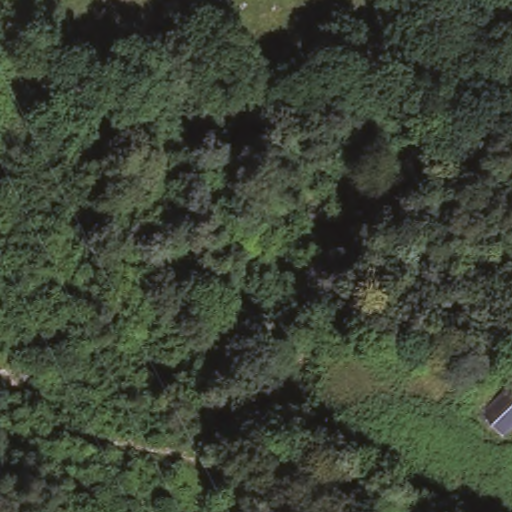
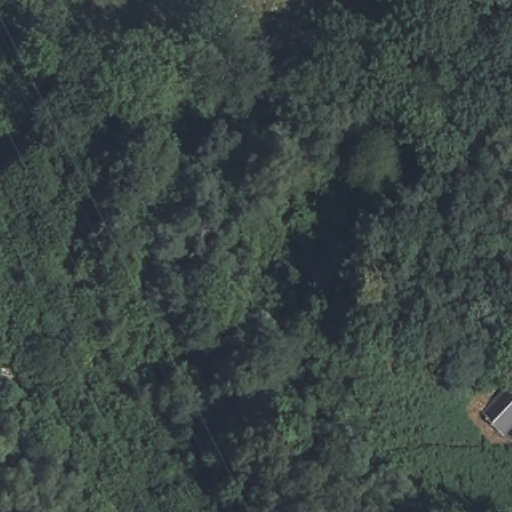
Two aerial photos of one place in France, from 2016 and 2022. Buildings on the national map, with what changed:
unchanged [(490,416),(512,399),(512,435),(507,438),(490,416)]

